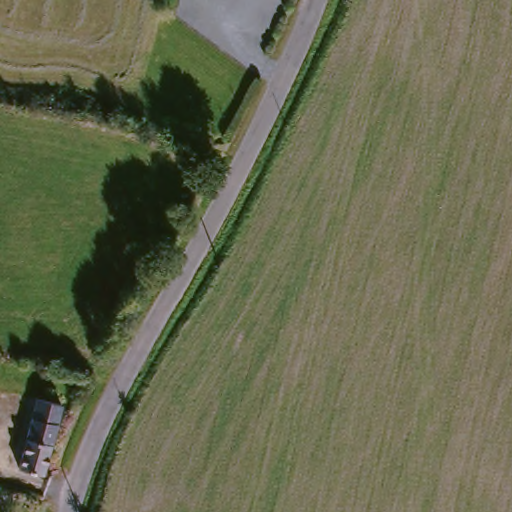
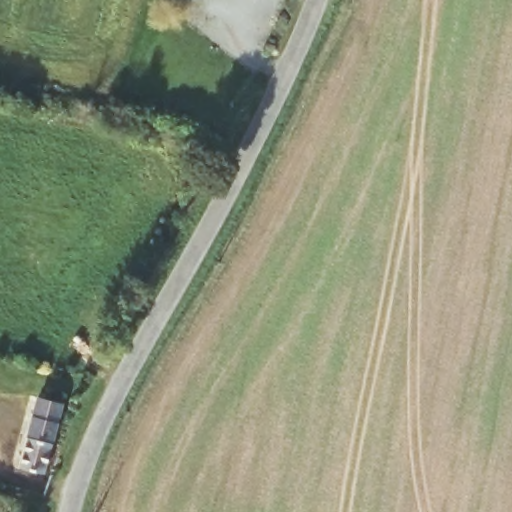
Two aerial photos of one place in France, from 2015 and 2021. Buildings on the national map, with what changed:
unchanged [(44,475),(29,471),(19,469),(25,436),(30,428),(34,413),(37,398),(59,405),(51,448),(44,475)]

